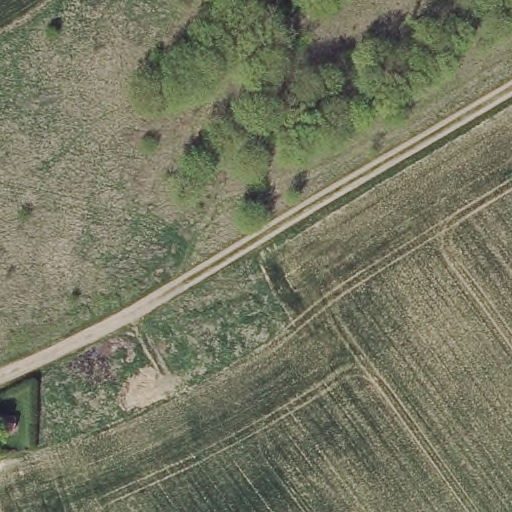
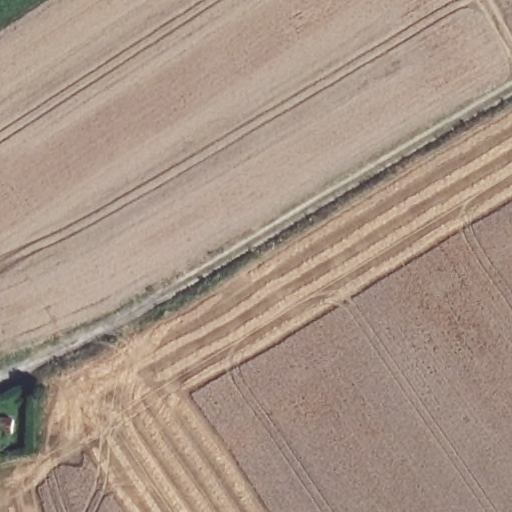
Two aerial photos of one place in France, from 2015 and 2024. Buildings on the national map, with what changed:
unchanged [(17,436),(0,437),(0,421),(17,421),(17,436)]

